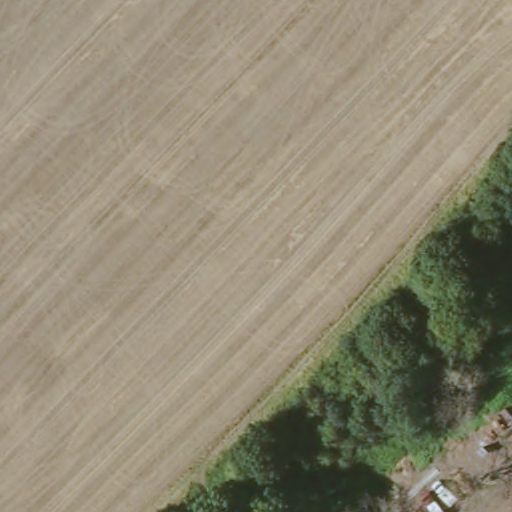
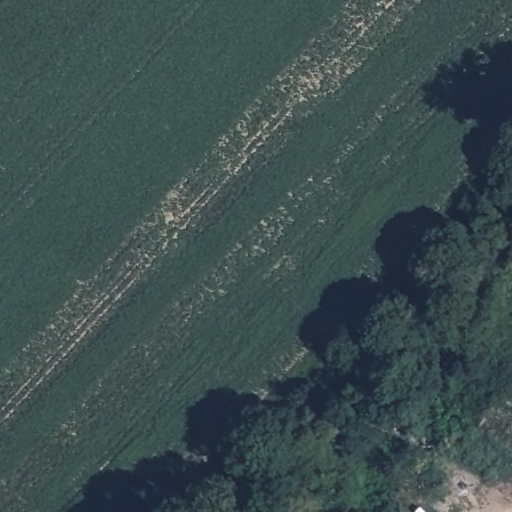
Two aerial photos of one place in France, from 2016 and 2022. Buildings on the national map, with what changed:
[]

